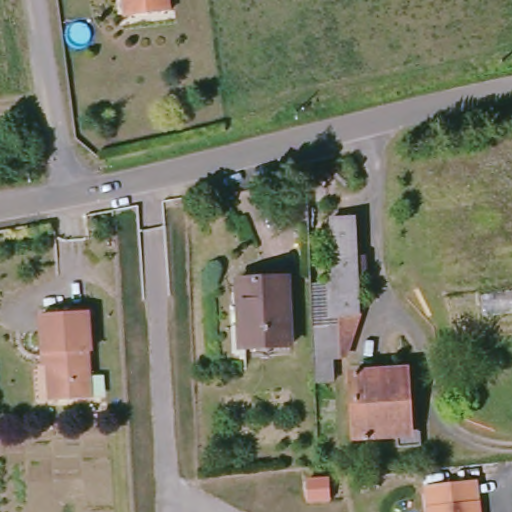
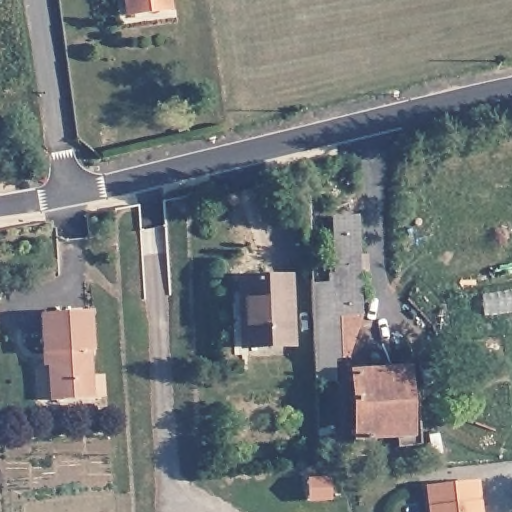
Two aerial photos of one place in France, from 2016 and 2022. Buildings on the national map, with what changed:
unchanged [(127,15),(125,0),(165,0),(166,10),(127,15)]
unchanged [(356,317),(348,360),(330,360),(329,384),(311,387),(308,303),(321,300),(322,275),(326,275),(325,219),(352,219),(356,317)]
unchanged [(233,352),(231,285),(282,283),(285,350),(233,352)]
unchanged [(86,311),(88,351),(85,351),(88,398),(48,400),(45,353),(41,354),(38,315),(86,311)]
unchanged [(404,371),(408,436),(354,440),(351,375),(404,371)]
unchanged [(424,488),(480,481),(484,512),(427,512),(424,488)]

